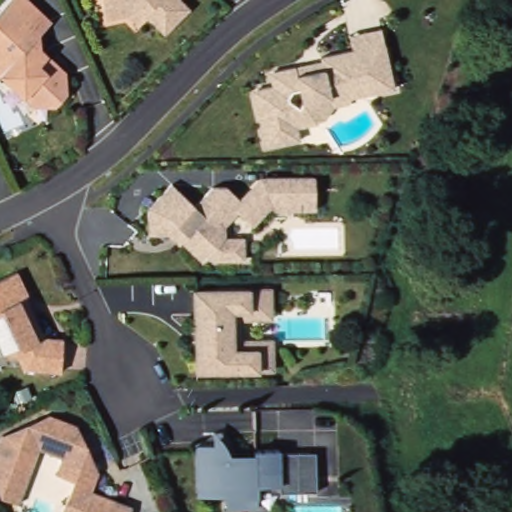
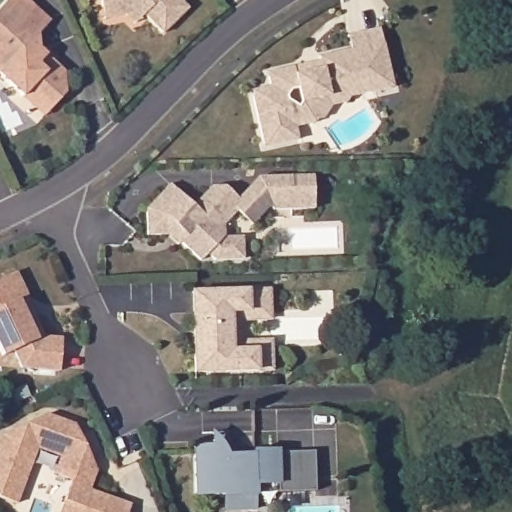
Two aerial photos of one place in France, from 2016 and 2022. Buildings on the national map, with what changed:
unchanged [(43,30),(47,47),(69,67),(71,92),(61,104),(36,105),(0,71),(0,12),(12,0),(35,0),(55,17),(43,30)]
unchanged [(170,33),(144,10),(108,12),(105,0),(189,0),(195,6),(170,33)]
unchanged [(397,84),(361,90),(327,116),(302,126),(305,138),(268,145),(251,85),(275,80),(272,65),(359,42),(356,31),(383,25),(397,84)]
unchanged [(313,206),(265,207),(251,221),(236,209),(224,221),(224,231),(241,233),(243,258),(202,257),(173,232),(149,232),(147,203),(171,181),(191,199),(208,184),(227,182),(238,195),(255,175),(312,175),(313,206)]
unchanged [(30,292),(27,294),(36,312),(46,333),(64,335),(61,368),(24,365),(16,347),(5,352),(0,341),(0,277),(19,268),(30,292)]
unchanged [(275,282),(277,315),(248,318),(247,335),(276,335),(275,366),(200,367),(199,287),(275,282)]
unchanged [(17,437),(21,425),(37,418),(46,421),(50,412),(79,423),(100,467),(92,487),(134,502),(131,512),(63,512),(75,478),(57,472),(64,455),(40,446),(20,502),(2,495),(0,490),(0,446),(5,433),(17,437)]
unchanged [(216,441),(215,430),(232,448),(285,448),(319,449),(321,486),(261,483),(260,506),(226,506),(225,493),(200,491),(199,443),(216,441)]

